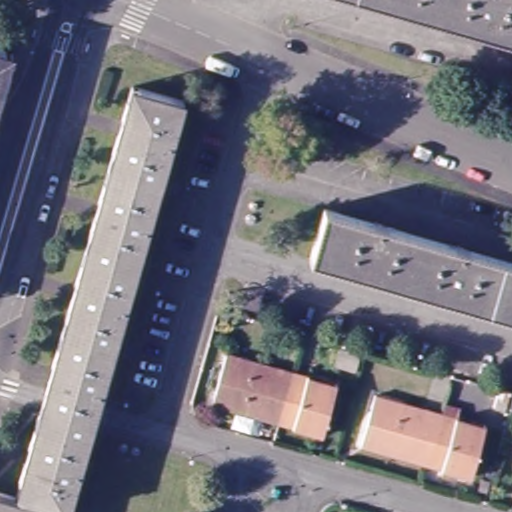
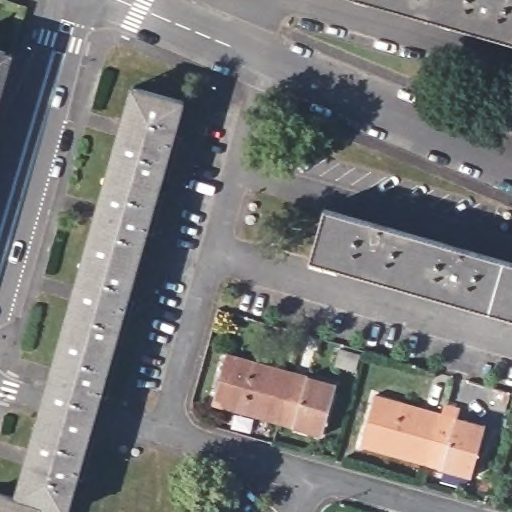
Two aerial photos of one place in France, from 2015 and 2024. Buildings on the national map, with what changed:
unchanged [(512,41),(370,0),(512,0),(512,41)]
unchanged [(0,114),(0,50),(17,55),(0,114)]
unchanged [(140,85),(191,99),(74,512),(47,504),(45,512),(0,512),(0,490),(20,496),(140,85)]
unchanged [(330,212),(512,264),(512,320),(316,265),(330,212)]
unchanged [(352,367),(332,361),(335,347),(356,352),(352,367)]
unchanged [(278,421),(212,402),(225,355),(292,374),(278,421)]
unchanged [(335,386),(321,433),(278,421),(292,374),(335,386)]
unchanged [(501,407),(490,404),(493,393),(504,397),(501,407)]
unchanged [(427,463),(360,444),(373,396),(441,416),(427,463)]
unchanged [(482,427),(468,476),(427,463),(441,416),(482,427)]

